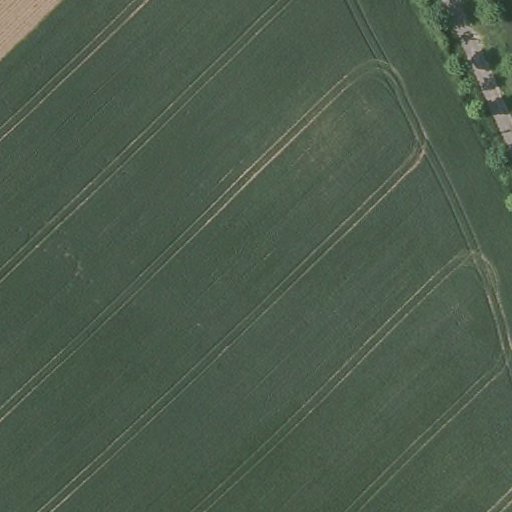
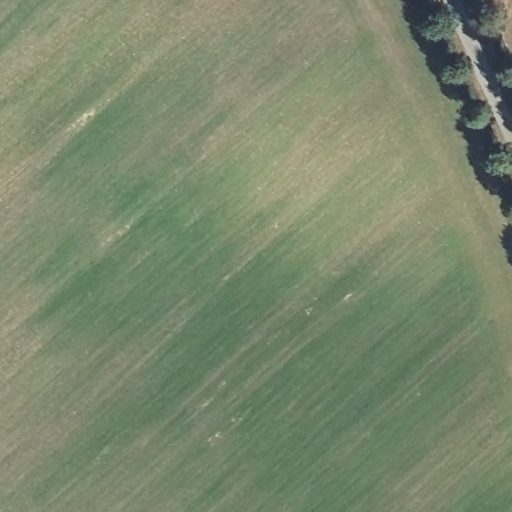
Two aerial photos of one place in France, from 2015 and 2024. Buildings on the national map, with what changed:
[]

